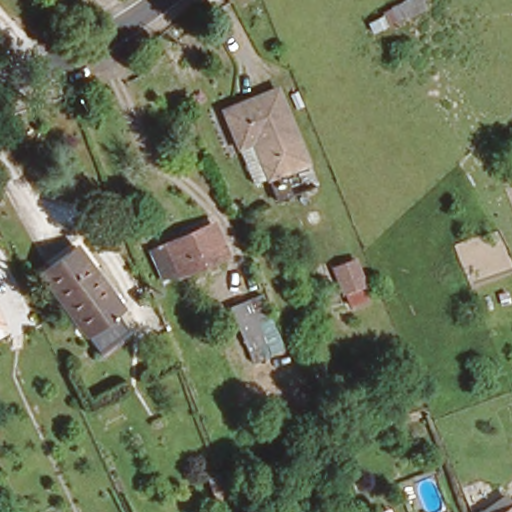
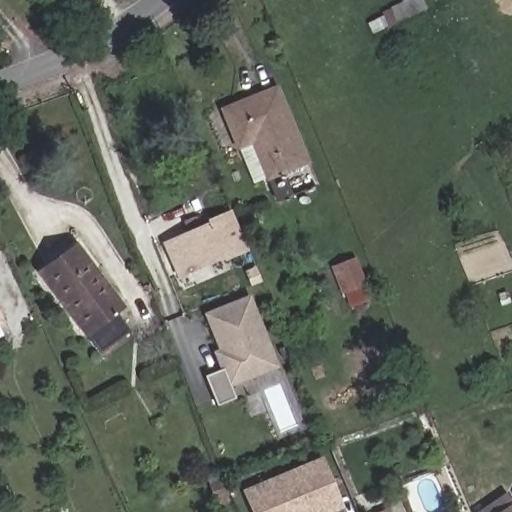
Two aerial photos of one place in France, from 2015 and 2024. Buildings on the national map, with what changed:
unchanged [(252,182),(213,108),(280,81),(306,161),(252,182)]
unchanged [(215,257),(172,278),(157,242),(201,222),(215,257)]
unchanged [(129,312),(97,343),(38,276),(73,245),(129,312)]
unchanged [(367,284),(350,293),(343,277),(361,270),(367,284)]
demolished [(278,350),(252,362),(228,305),(254,293),(278,350)]
new [(234,396),(216,403),(206,379),(221,373),(212,353),(217,351),(203,313),(250,295),(280,368),(231,388),(234,396)]
unchanged [(3,322),(0,323),(0,316),(3,322)]
new [(344,509),(337,512),(250,512),(241,491),(322,457),(344,509)]
new [(208,480),(220,476),(222,481),(227,494),(225,495),(215,498),(210,486),(208,480)]
new [(220,505),(217,498),(225,495),(228,501),(220,505)]
unchanged [(512,512),(499,512),(512,502),(512,512)]
unchanged [(391,512),(380,512),(389,507),(391,512)]

